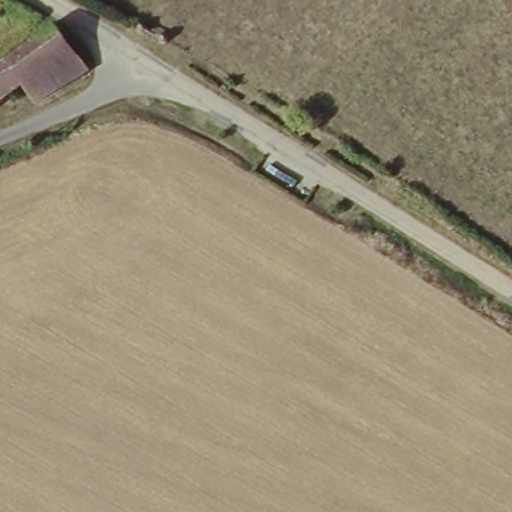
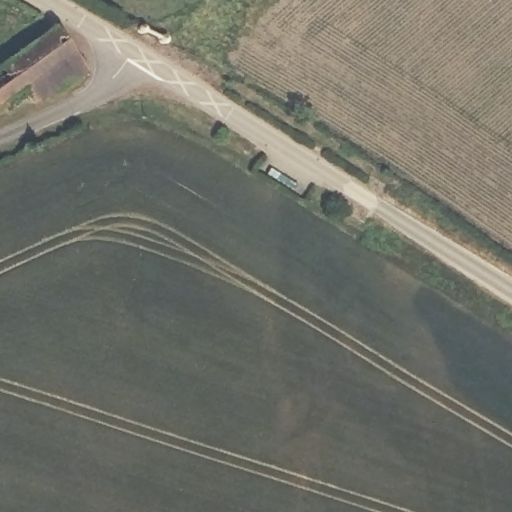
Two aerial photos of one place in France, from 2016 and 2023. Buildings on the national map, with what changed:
unchanged [(149,25),(152,20),(164,25),(161,31),(166,34),(169,39),(165,45),(158,43),(156,35),(147,31),(144,33),(139,31),(137,28),(138,23),(145,23),(149,25)]
unchanged [(56,26),(71,47),(90,69),(36,102),(24,87),(0,104),(0,66),(56,26)]

